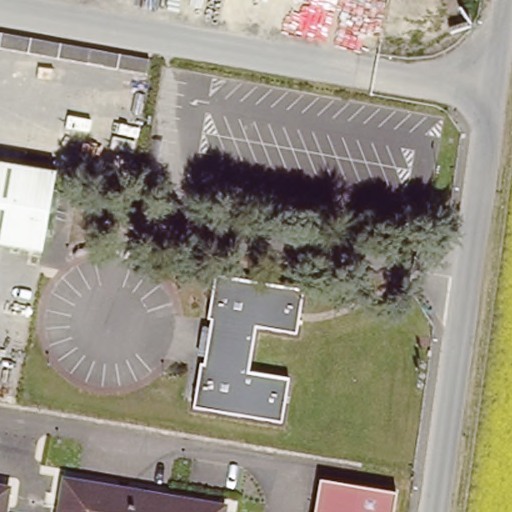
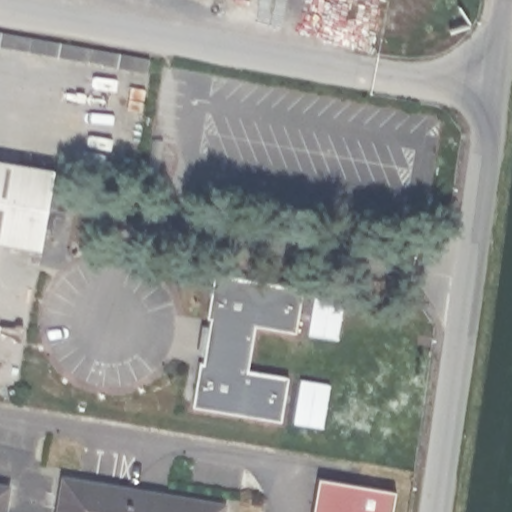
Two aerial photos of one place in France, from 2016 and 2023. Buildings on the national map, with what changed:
unchanged [(148,60),(146,75),(0,49),(0,34),(148,60)]
unchanged [(55,173),(42,256),(0,250),(0,164),(55,173)]
unchanged [(301,291),(294,335),(254,328),(247,372),(287,380),(280,423),(192,410),(214,276),(301,291)]
unchanged [(228,512),(57,512),(63,480),(229,507),(228,512)]
unchanged [(396,497),(393,512),(315,512),(320,485),(396,497)]
unchanged [(12,488),(8,512),(0,512),(0,487),(12,488)]

